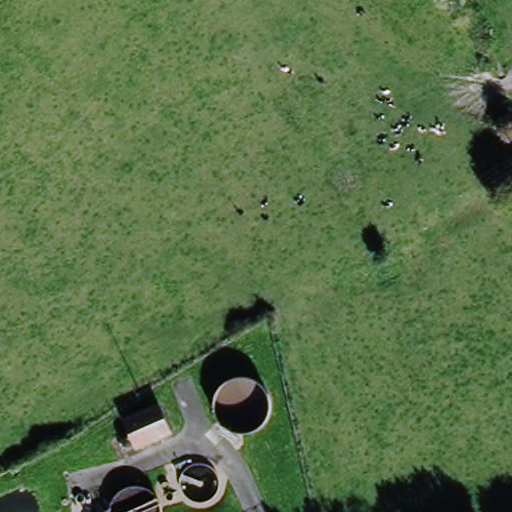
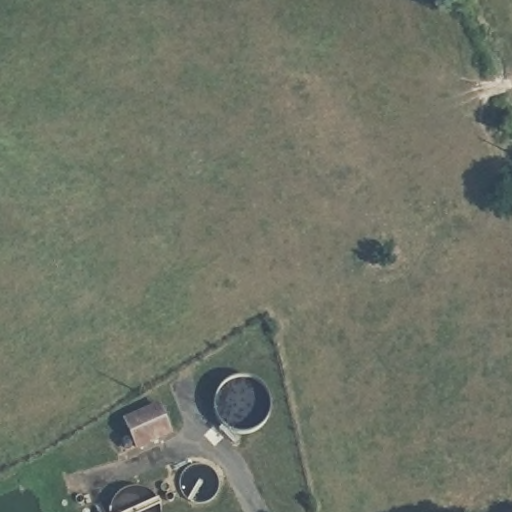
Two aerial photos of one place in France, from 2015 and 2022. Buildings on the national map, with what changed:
unchanged [(122,420),(156,405),(167,432),(133,446),(122,420)]

